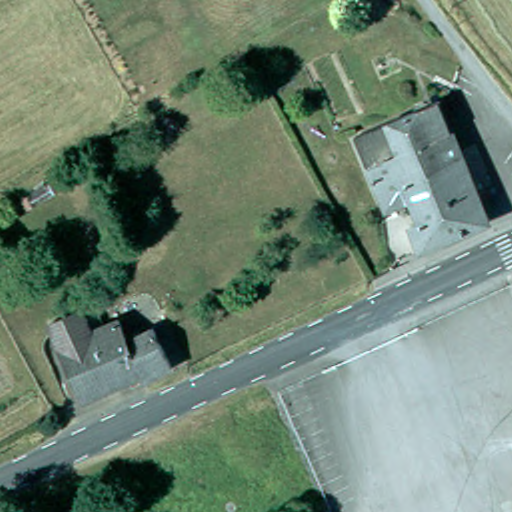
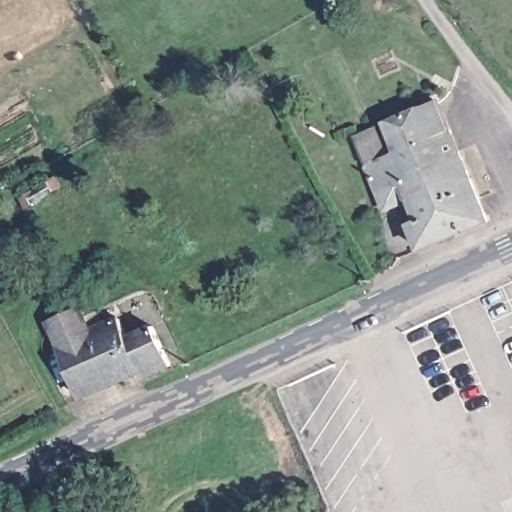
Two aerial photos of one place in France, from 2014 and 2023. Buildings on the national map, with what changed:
unchanged [(431,218),(422,196),(396,208),(372,146),(366,133),(448,96),(453,110),(497,215),(430,245),(421,222),(431,218)]
unchanged [(25,215),(0,230),(0,214),(20,203),(23,212),(25,215)]
unchanged [(110,304),(118,323),(145,310),(157,330),(162,328),(177,361),(151,374),(150,370),(88,398),(54,331),(52,326),(107,299),(110,304)]

